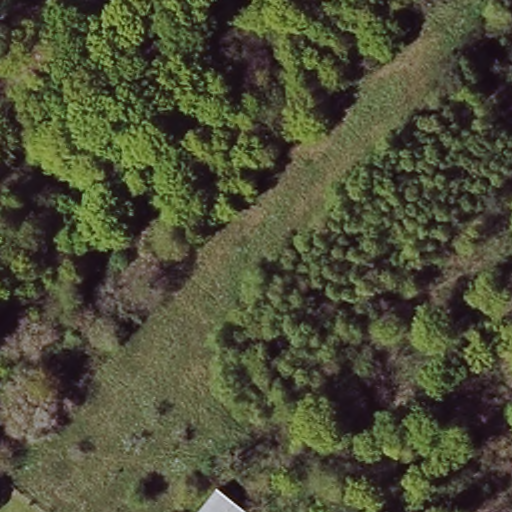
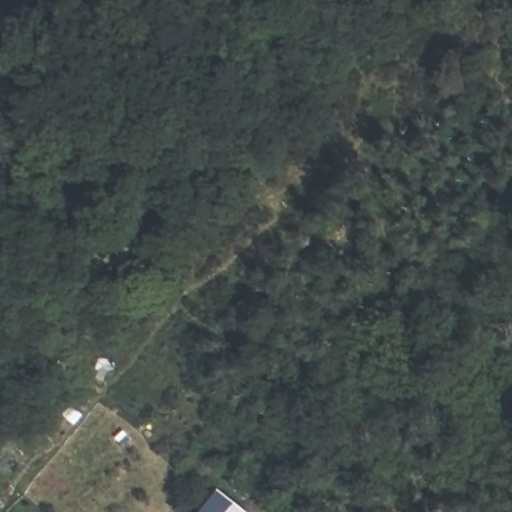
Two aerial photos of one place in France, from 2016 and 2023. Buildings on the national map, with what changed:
unchanged [(241,512),(211,512),(223,498),(241,512)]

